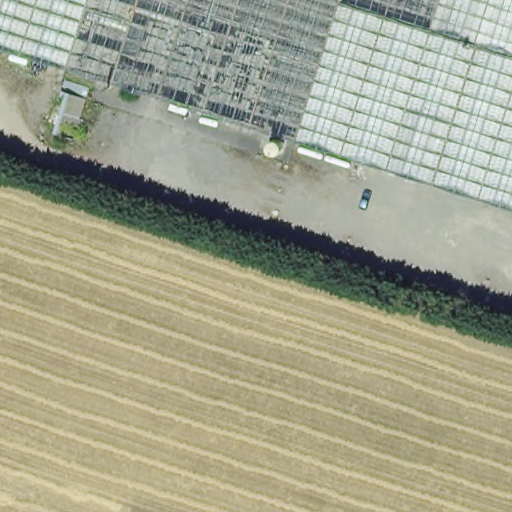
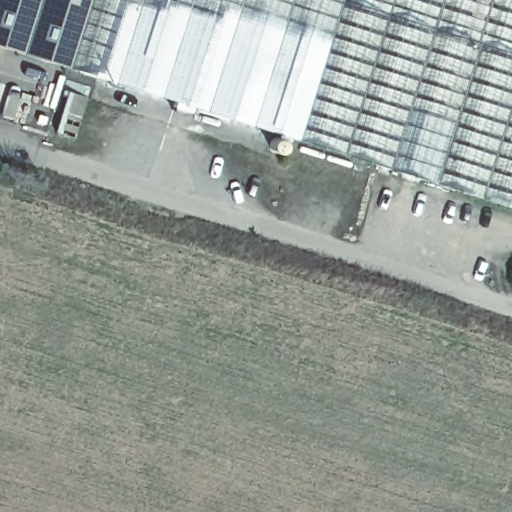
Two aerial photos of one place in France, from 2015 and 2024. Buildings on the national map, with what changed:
unchanged [(98,0),(75,73),(0,48),(0,0),(98,0)]
unchanged [(98,0),(350,0),(304,146),(75,73),(98,0)]
unchanged [(350,0),(512,0),(512,214),(304,146),(350,0)]

